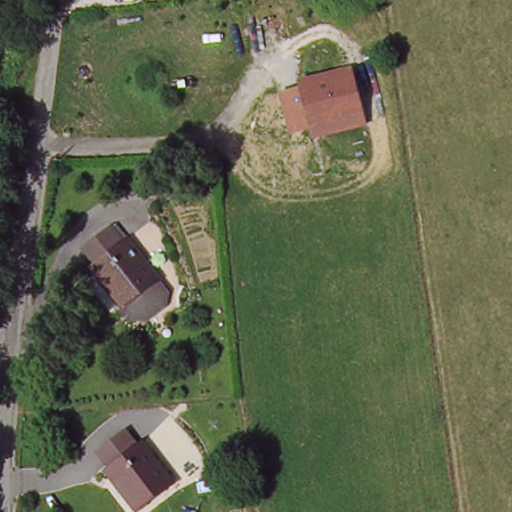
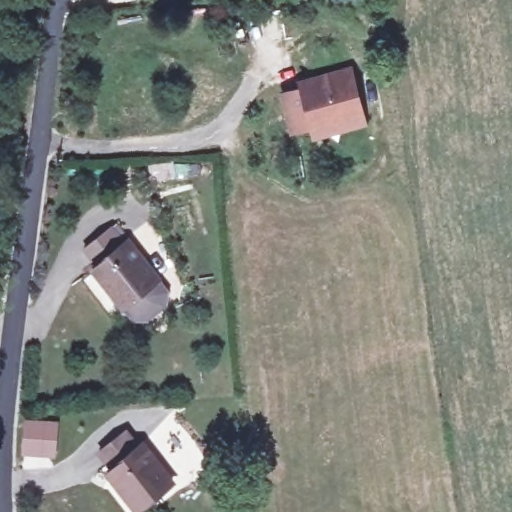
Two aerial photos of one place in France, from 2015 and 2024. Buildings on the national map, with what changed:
unchanged [(368,126),(315,140),(313,130),(290,135),(283,92),(302,85),(301,79),(353,66),(368,126)]
unchanged [(123,245),(117,250),(124,260),(130,255),(170,303),(170,304),(168,307),(166,310),(165,312),(163,315),(161,317),(160,320),(157,322),(155,324),(152,325),(150,327),(147,329),(145,330),(141,331),(139,332),(136,333),(133,334),(130,335),(92,287),(100,281),(81,258),(113,232),(123,245)]
new [(23,418),(59,421),(53,468),(21,468),(23,418)]
unchanged [(133,456),(138,453),(170,490),(144,512),(127,512),(103,484),(107,480),(91,460),(116,437),(133,456)]

